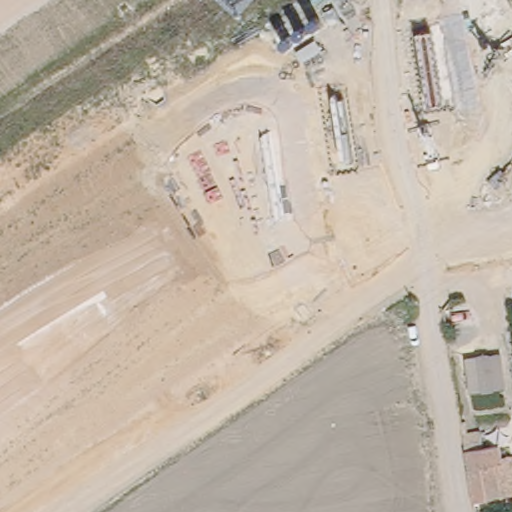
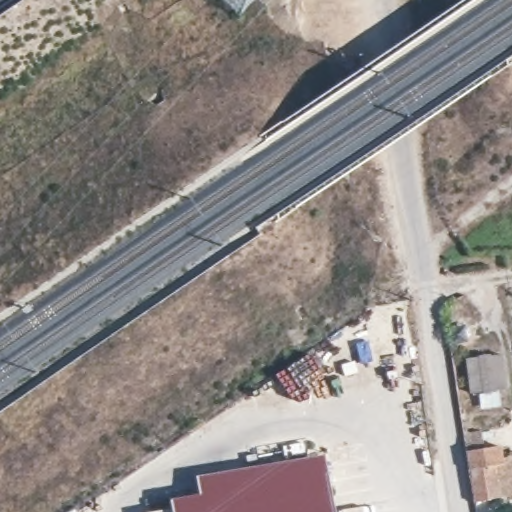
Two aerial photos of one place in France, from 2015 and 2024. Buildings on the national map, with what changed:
unchanged [(467,356),(502,352),(505,386),(470,389),(467,356)]
unchanged [(500,447),(507,446),(508,455),(512,455),(512,493),(475,499),(465,450),(500,445),(500,447)]
new [(194,474),(258,462),(323,453),(332,512),(170,512),(169,507),(168,498),(196,493),(194,474)]
new [(170,512),(140,512),(169,507),(170,512)]

